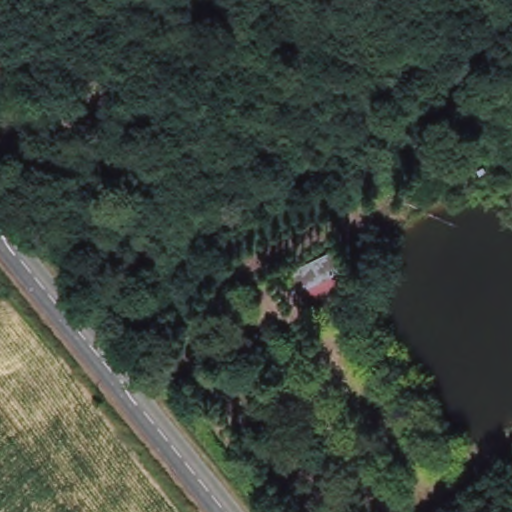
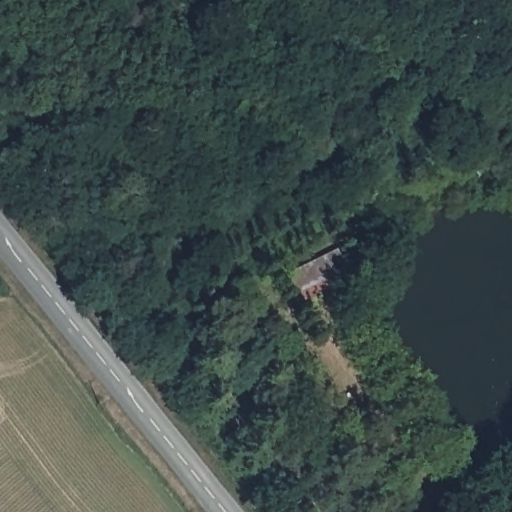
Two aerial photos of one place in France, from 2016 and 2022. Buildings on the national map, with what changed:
unchanged [(286,276),(334,253),(346,284),(297,305),(286,276)]

